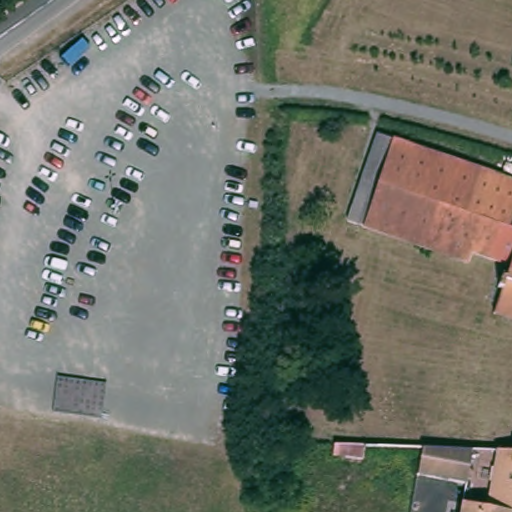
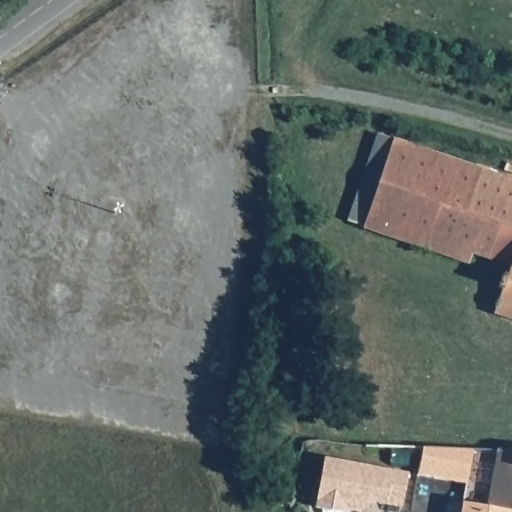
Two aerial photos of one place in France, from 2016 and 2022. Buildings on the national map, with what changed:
unchanged [(456,153),(453,159),(512,182),(512,259),(482,247),(474,267),(393,235),(395,231),(368,221),(353,215),(370,175),(385,135),(400,140),(402,134),(456,153)]
unchanged [(498,317),(511,285),(502,281),(507,268),(512,270),(512,322),(498,317)]
unchanged [(474,454),(471,479),(421,474),(425,449),(474,454)]
unchanged [(488,505),(497,449),(512,449),(512,508),(488,505)]
new [(365,510),(347,508),(347,512),(316,506),(324,456),(408,472),(402,507),(386,504),(367,501),(365,510)]
unchanged [(467,501),(481,503),(512,508),(512,512),(465,512),(467,501)]

